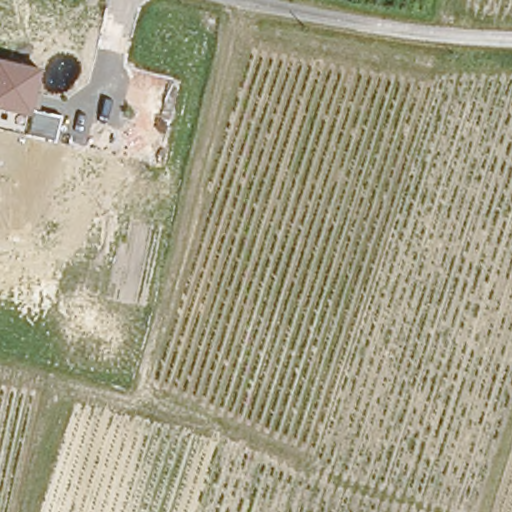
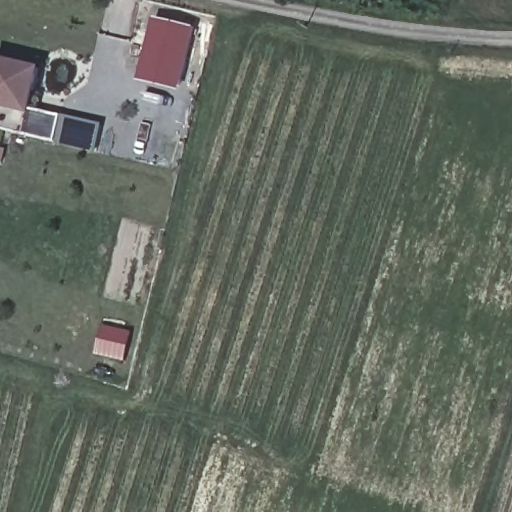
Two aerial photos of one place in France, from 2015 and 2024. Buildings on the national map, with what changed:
new [(152,19),(192,29),(177,87),(137,78),(152,19)]
unchanged [(25,135),(0,130),(0,59),(42,68),(37,91),(43,93),(40,112),(62,116),(56,142),(25,135)]

